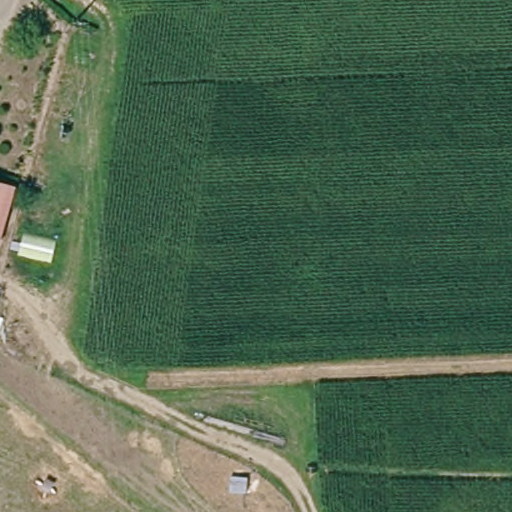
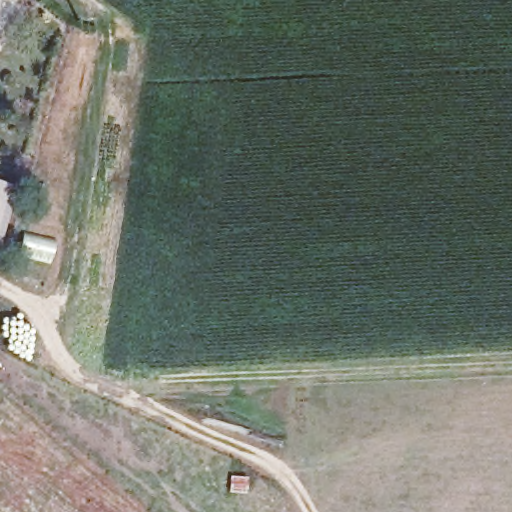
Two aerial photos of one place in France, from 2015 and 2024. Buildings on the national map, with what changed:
unchanged [(15,186),(0,239),(0,182),(15,186)]

